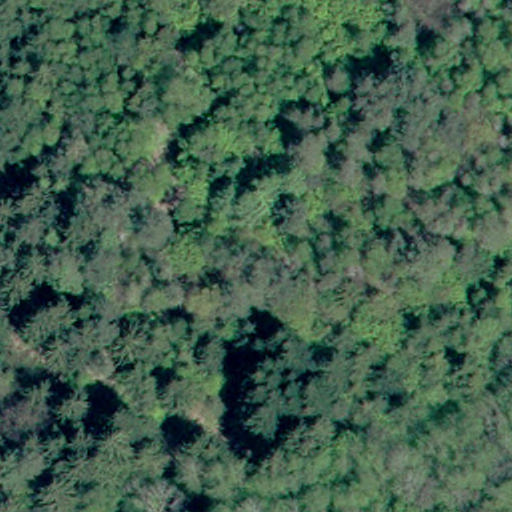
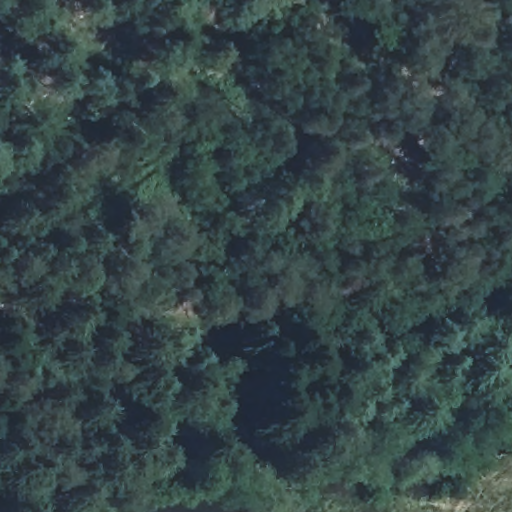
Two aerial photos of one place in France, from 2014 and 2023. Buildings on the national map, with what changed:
[]

